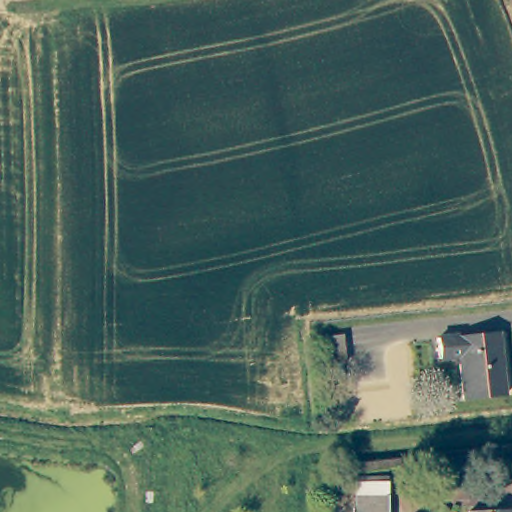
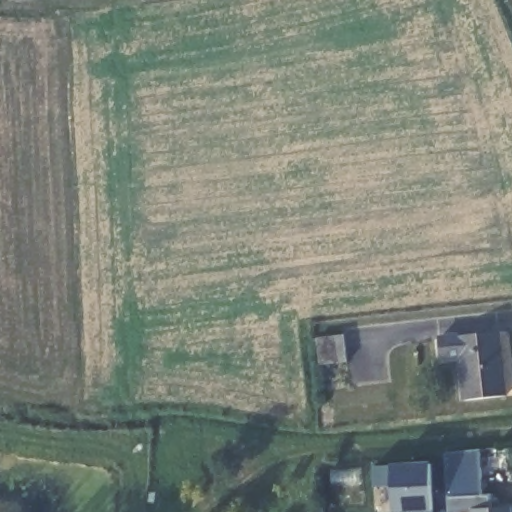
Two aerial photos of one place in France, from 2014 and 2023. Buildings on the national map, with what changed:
unchanged [(503,333),(509,395),(469,400),(465,358),(445,360),(443,340),(503,333)]
unchanged [(341,335),(344,361),(319,364),(316,339),(341,335)]
new [(488,497),(489,509),(511,508),(511,512),(469,512),(469,511),(447,512),(443,455),(479,451),(480,497),(488,497)]
new [(432,512),(391,512),(391,487),(372,488),(371,467),(394,465),(430,463),(432,512)]
demolished [(511,512),(470,512),(470,509),(511,508),(511,512)]

